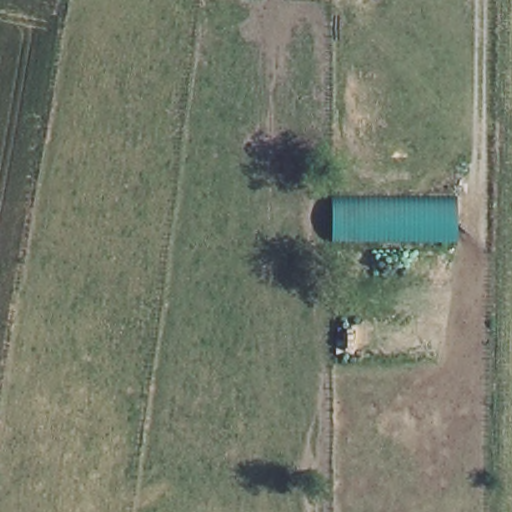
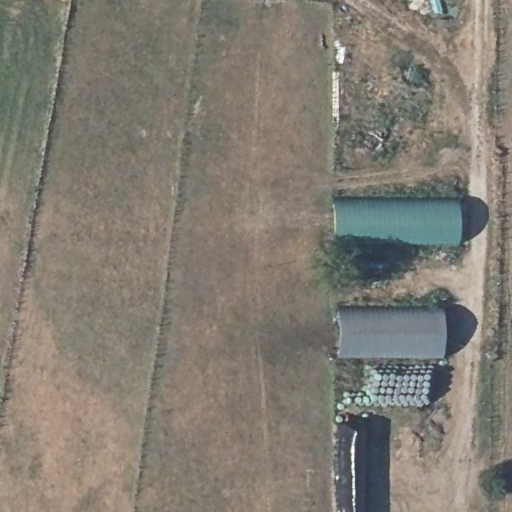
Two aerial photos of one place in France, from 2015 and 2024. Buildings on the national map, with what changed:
unchanged [(461,197),(459,244),(336,243),(337,197),(461,197)]
new [(337,307),(442,307),(441,357),(337,357),(337,307)]

